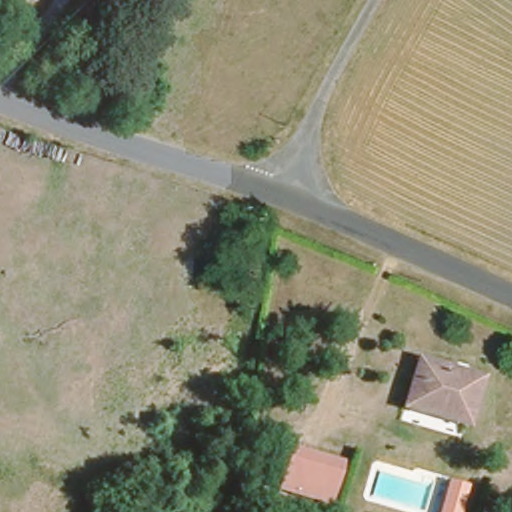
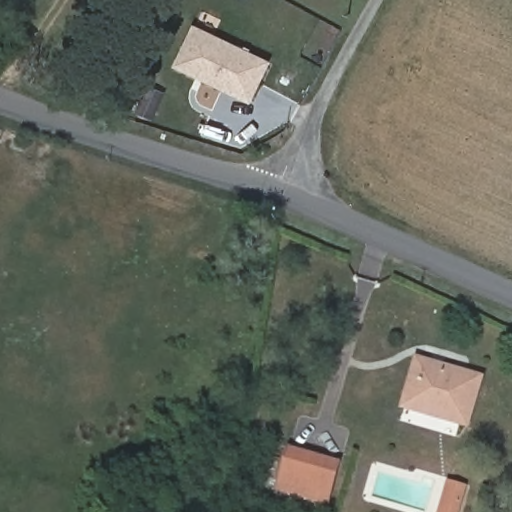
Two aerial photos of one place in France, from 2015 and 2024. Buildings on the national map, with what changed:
new [(194,24),(272,62),(251,104),(174,67),(194,24)]
unchanged [(479,376),(463,425),(438,417),(440,408),(426,404),(424,412),(398,405),(412,355),(479,376)]
unchanged [(337,461),(327,501),(276,487),(286,445),(337,461)]
new [(448,479),(465,484),(459,506),(457,512),(439,512),(442,501),(448,479)]

